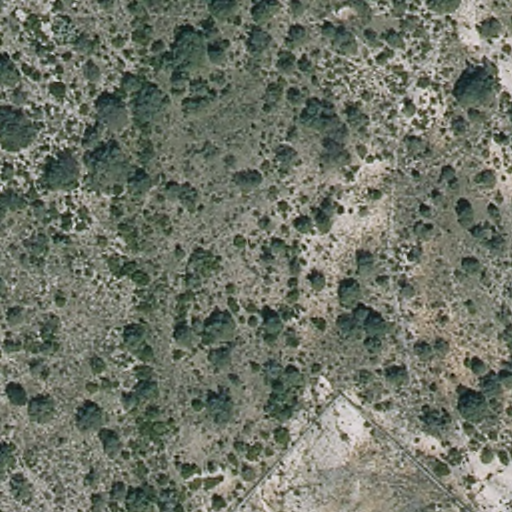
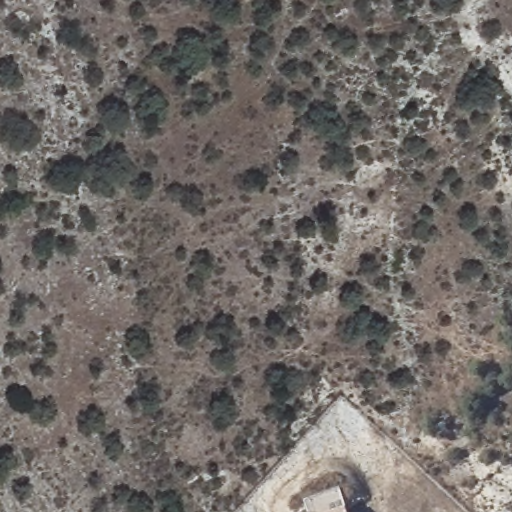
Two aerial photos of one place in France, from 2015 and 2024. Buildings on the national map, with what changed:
new [(306,501),(340,489),(348,512),(310,512),(306,501)]

